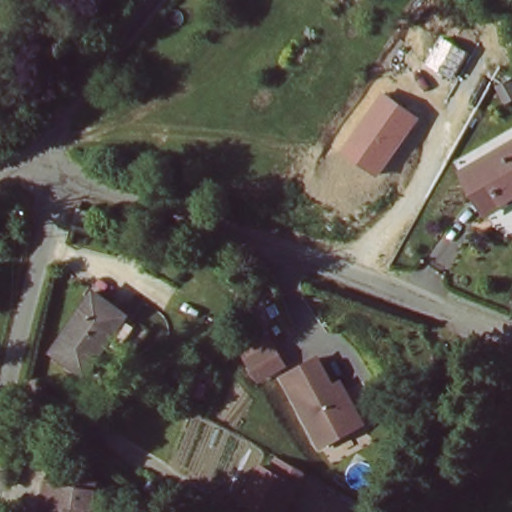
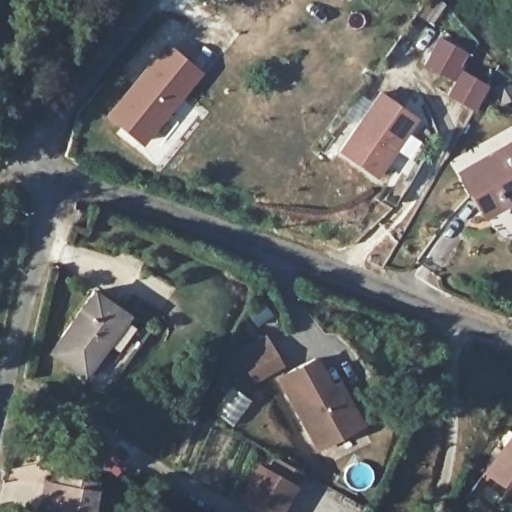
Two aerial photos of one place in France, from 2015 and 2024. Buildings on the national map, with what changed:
new [(446,93),(453,81),(424,65),(440,37),(468,52),(460,70),(488,86),(475,111),(446,93)]
new [(166,42),(202,72),(141,146),(105,115),(166,42)]
unchanged [(377,178),(338,153),(379,93),(419,119),(377,178)]
unchanged [(463,174),(512,147),(512,199),(486,213),(463,174)]
unchanged [(88,372),(52,347),(94,288),(128,312),(88,372)]
unchanged [(269,341),(280,360),(253,377),(242,358),(269,341)]
unchanged [(313,352),(336,387),(343,382),(363,415),(321,441),(279,372),(313,352)]
new [(512,429),(512,493),(484,472),(512,429)]
unchanged [(286,512),(269,512),(247,502),(264,467),(273,472),(279,459),(306,472),(286,512)]
unchanged [(38,503),(40,480),(87,486),(85,508),(38,503)]
unchanged [(84,512),(37,512),(38,503),(85,508),(84,512)]

